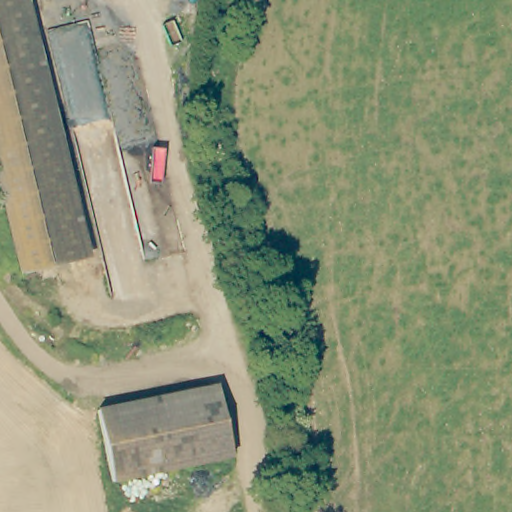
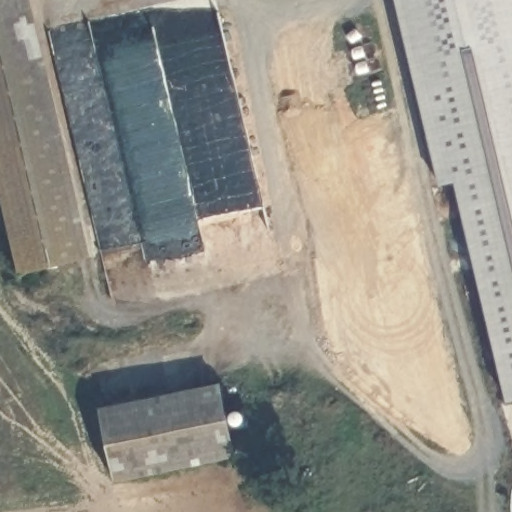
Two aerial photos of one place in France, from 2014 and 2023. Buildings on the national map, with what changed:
unchanged [(21,0),(81,258),(24,271),(0,167),(0,0),(21,0)]
new [(453,185),(437,188),(393,0),(512,0),(512,402),(505,403),(453,185)]
unchanged [(240,454),(117,480),(104,408),(224,382),(240,454)]

